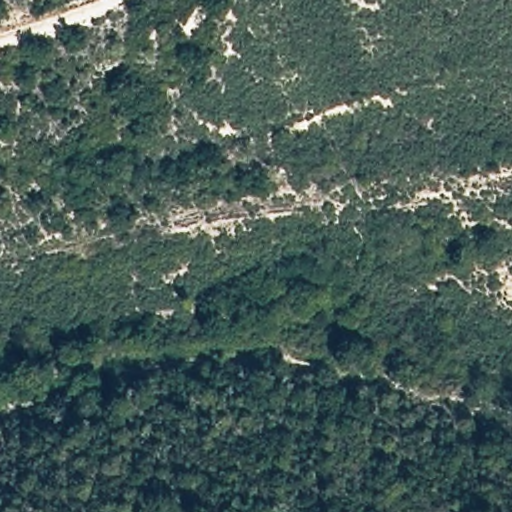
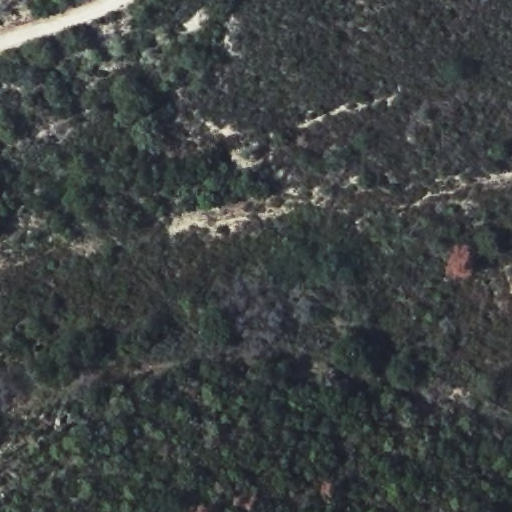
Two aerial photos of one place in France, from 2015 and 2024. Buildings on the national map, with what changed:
[]

